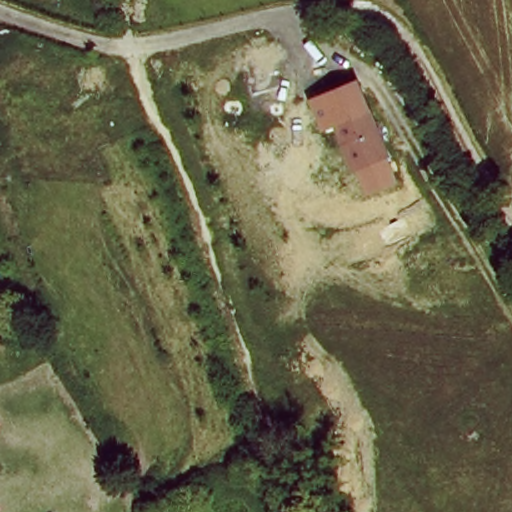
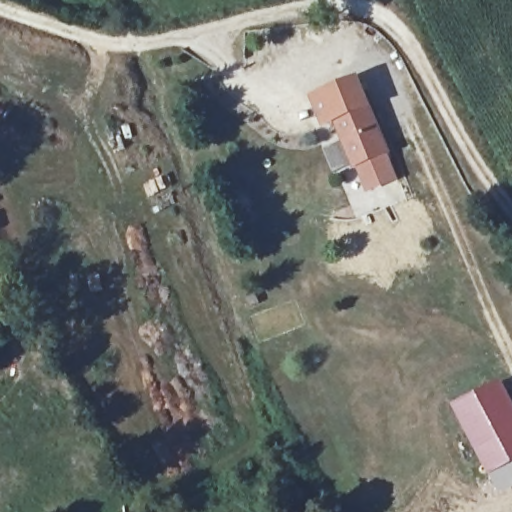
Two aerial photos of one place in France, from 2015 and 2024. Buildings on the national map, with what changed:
unchanged [(323,148),(344,139),(337,122),(325,125),(313,94),(363,75),(401,180),(368,192),(354,163),(333,172),(323,148)]
new [(512,395),(512,489),(500,496),(453,407),(505,380),(512,395)]

